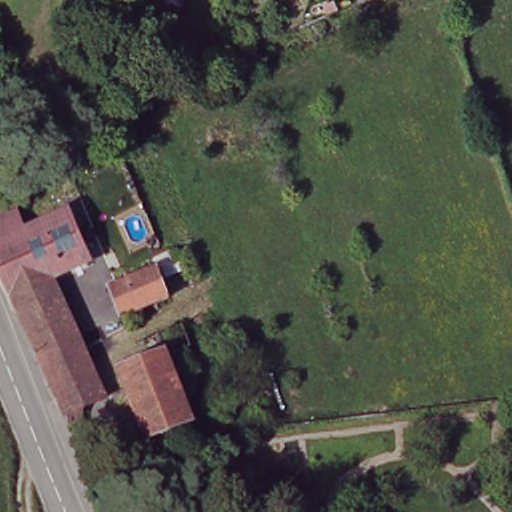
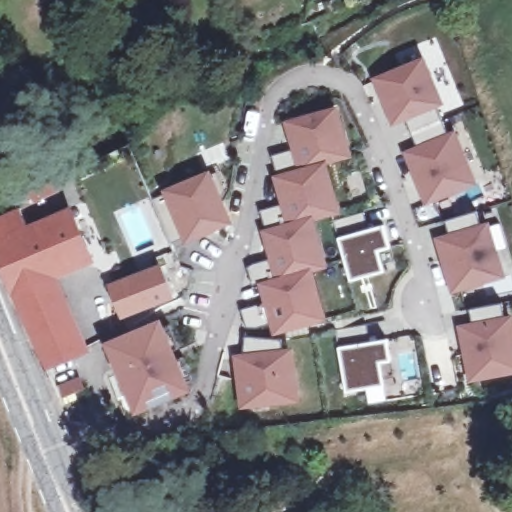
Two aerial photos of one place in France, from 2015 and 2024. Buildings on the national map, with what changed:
new [(407,120),(391,126),(371,78),(424,55),(445,104),(437,108),(448,134),(456,130),(479,185),(424,206),(403,151),(417,145),(407,120)]
new [(256,329),(246,327),(241,310),(264,303),(258,283),(252,285),(248,267),(269,260),(261,230),(266,229),(261,212),(281,205),(271,175),(277,175),(273,156),(291,150),(283,122),(338,106),(353,157),(327,164),(339,213),(314,220),(327,268),(314,272),(326,320),(273,335),(269,325),(256,329)]
new [(210,170),(233,222),(184,245),(159,190),(210,170)]
unchanged [(12,285),(2,263),(0,258),(0,215),(21,206),(30,224),(71,207),(91,256),(54,270),(12,285)]
new [(445,221),(476,211),(480,225),(489,222),(507,277),(451,293),(434,238),(449,234),(445,221)]
new [(364,214),(369,229),(381,225),(389,248),(378,251),(383,271),(350,280),(338,239),(334,222),(364,214)]
unchanged [(169,297),(120,315),(108,286),(156,267),(161,280),(169,297)]
new [(12,285),(54,270),(91,353),(46,370),(12,285)]
new [(502,303),(504,316),(512,314),(512,375),(468,383),(457,325),(472,322),(469,310),(502,303)]
new [(115,360),(110,345),(158,325),(186,389),(124,415),(120,406),(123,406),(120,400),(123,398),(108,363),(115,360)]
new [(368,325),(370,342),(386,340),(389,361),(379,362),(384,386),(346,392),(339,348),(334,331),(368,325)]
new [(281,340),(283,349),(293,347),(300,401),(239,410),(233,355),(243,354),(244,337),(281,340)]
demolished [(124,371),(171,354),(198,421),(191,423),(150,437),(124,371)]

